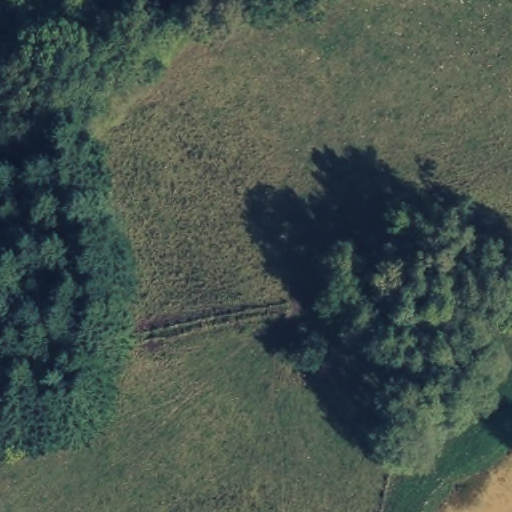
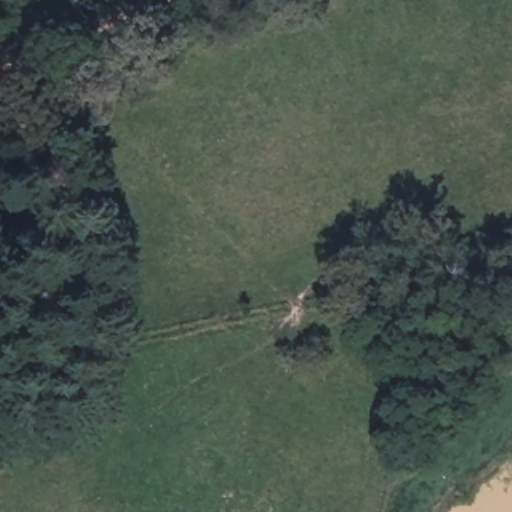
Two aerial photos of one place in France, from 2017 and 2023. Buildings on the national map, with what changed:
[]

